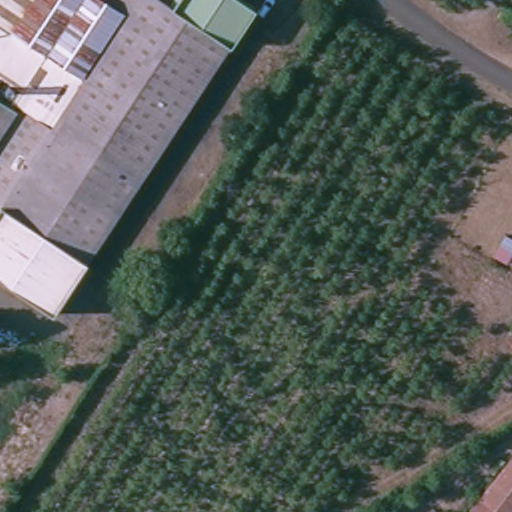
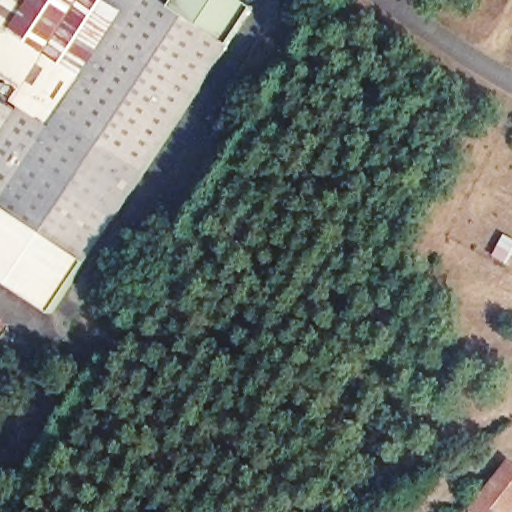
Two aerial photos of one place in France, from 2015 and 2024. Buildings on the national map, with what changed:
unchanged [(11,117),(22,100),(0,87),(0,0),(255,0),(57,312),(0,277),(0,111),(11,117)]
unchanged [(509,0),(512,0),(512,28),(499,21),(509,0)]
unchanged [(512,460),(512,512),(509,510),(507,512),(481,512),(476,509),(511,459),(512,460)]

